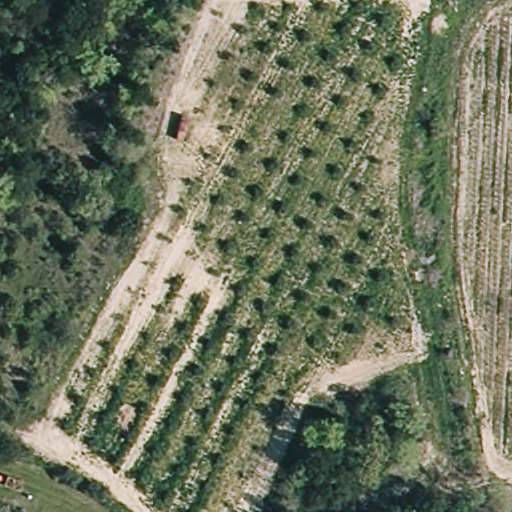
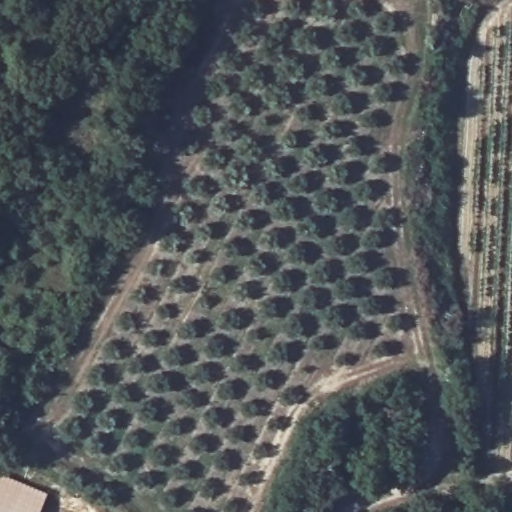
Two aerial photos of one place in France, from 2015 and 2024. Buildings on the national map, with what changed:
new [(53,503),(48,512),(0,512),(0,494),(6,481),(31,492),(53,503)]

